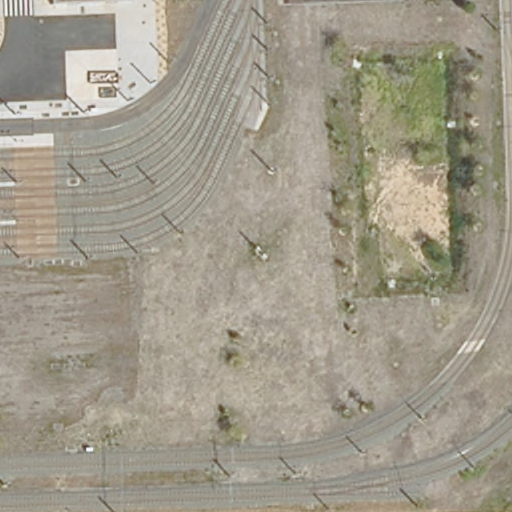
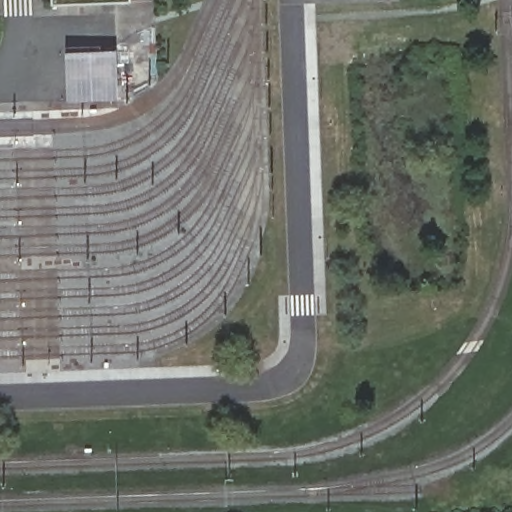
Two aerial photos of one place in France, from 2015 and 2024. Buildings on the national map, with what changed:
unchanged [(50,0),(105,0),(51,2),(50,0)]
new [(66,55),(115,53),(117,99),(67,100),(66,55)]

